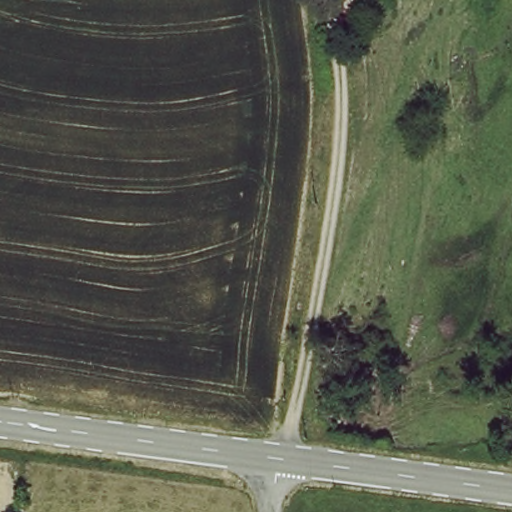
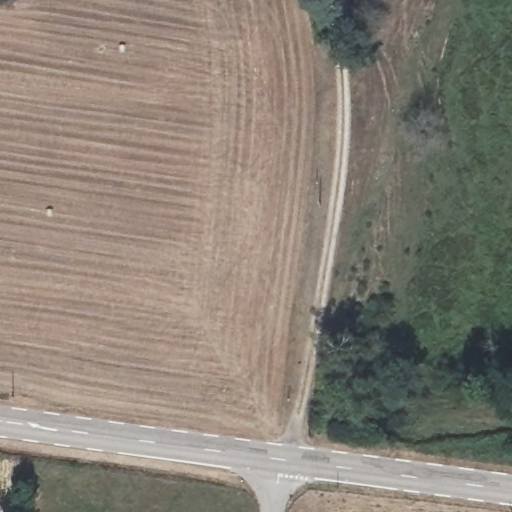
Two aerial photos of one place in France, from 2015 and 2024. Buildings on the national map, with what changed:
[]

